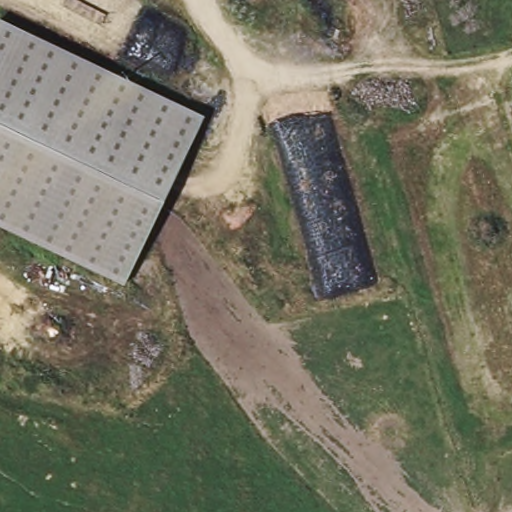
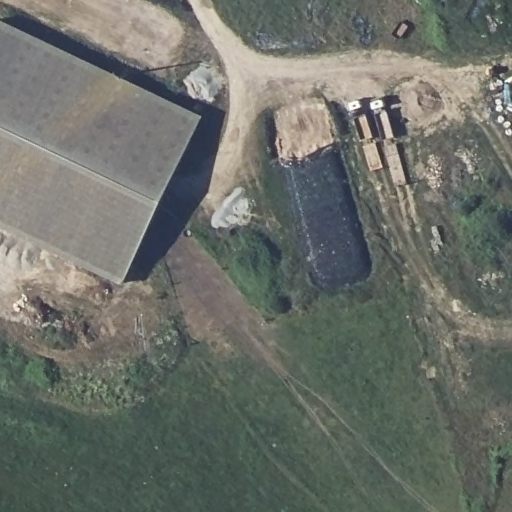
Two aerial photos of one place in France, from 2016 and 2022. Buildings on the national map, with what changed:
unchanged [(181,106),(206,117),(189,152),(148,237),(125,284),(71,258),(0,224),(0,20),(0,19),(181,106)]

